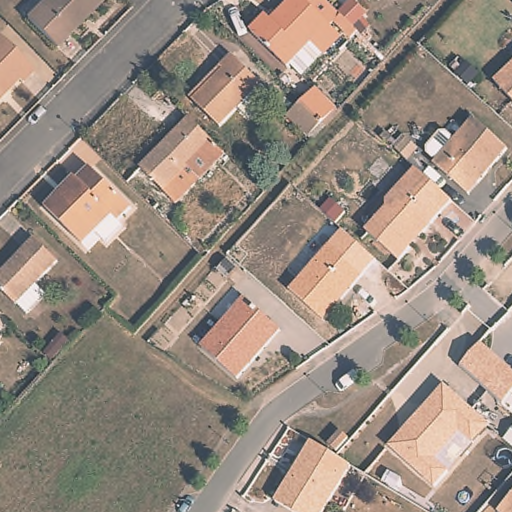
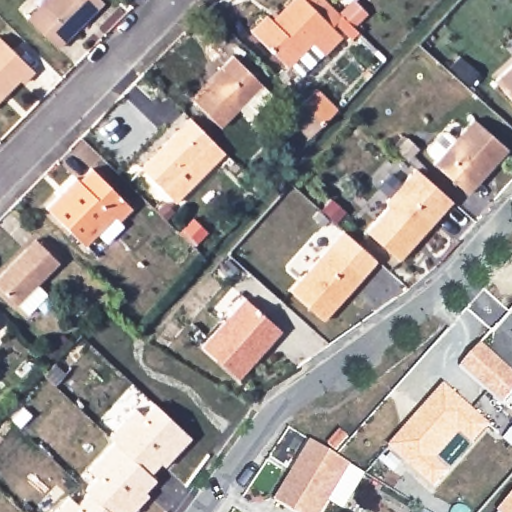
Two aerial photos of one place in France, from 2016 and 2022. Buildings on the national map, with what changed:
unchanged [(101,3),(56,49),(25,20),(46,0),(98,0),(101,3)]
unchanged [(341,37),(301,77),(290,65),(287,67),(251,32),(267,16),(272,21),(294,0),(326,0),(343,18),(358,33),(350,40),(335,26),(332,28),(341,37)]
unchanged [(22,84),(19,80),(0,99),(0,38),(34,72),(22,84)]
unchanged [(220,68),(232,55),(262,85),(260,88),(270,98),(249,120),(239,110),(220,128),(192,101),(222,71),(220,68)]
unchanged [(512,66),(512,98),(496,80),(512,66)]
unchanged [(306,136),(287,117),(301,103),(315,88),(335,107),(338,111),(325,126),(311,141),(306,136)]
unchanged [(140,169),(190,120),(212,141),(225,153),(201,176),(174,203),(140,169)]
unchanged [(465,197),(430,167),(471,122),(505,152),(465,197)]
unchanged [(411,157),(405,164),(395,155),(401,147),(411,157)]
unchanged [(78,182),(91,168),(130,208),(117,221),(122,227),(105,243),(95,232),(82,245),(45,209),(75,179),(78,182)]
unchanged [(364,235),(385,212),(384,204),(413,172),(450,204),(397,265),(364,235)]
unchanged [(58,262),(35,285),(46,295),(27,314),(0,290),(0,277),(36,240),(58,262)]
unchanged [(320,324),(286,294),(327,249),(360,279),(347,293),(335,308),(320,324)]
unchanged [(203,351),(245,302),(281,333),(239,383),(203,351)]
unchanged [(45,351),(60,335),(68,343),(54,359),(45,351)]
unchanged [(460,365),(481,343),(512,373),(512,394),(502,404),(460,365)]
unchanged [(445,386),(490,428),(475,447),(459,434),(435,461),(450,474),(434,490),(386,448),(445,386)]
new [(76,502),(86,491),(82,488),(94,477),(85,469),(112,440),(106,436),(133,406),(142,413),(152,402),(190,437),(163,467),(160,464),(150,475),(156,480),(145,492),(148,494),(131,512),(51,512),(67,494),(76,502)]
unchanged [(334,444),(345,430),(354,437),(342,451),(334,444)]
unchanged [(317,441),(338,454),(357,465),(329,512),(298,512),(281,502),(317,441)]
unchanged [(512,512),(504,512),(512,504),(512,512)]

